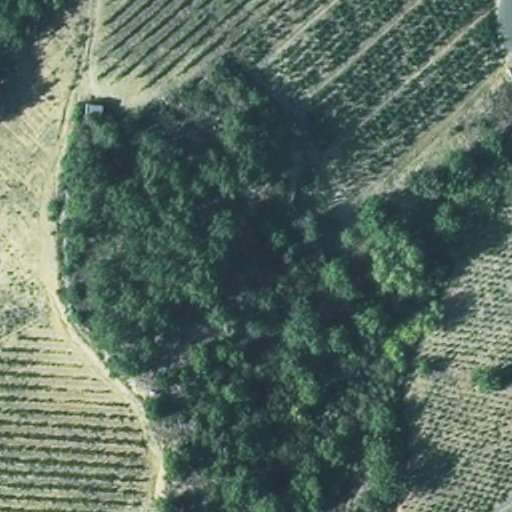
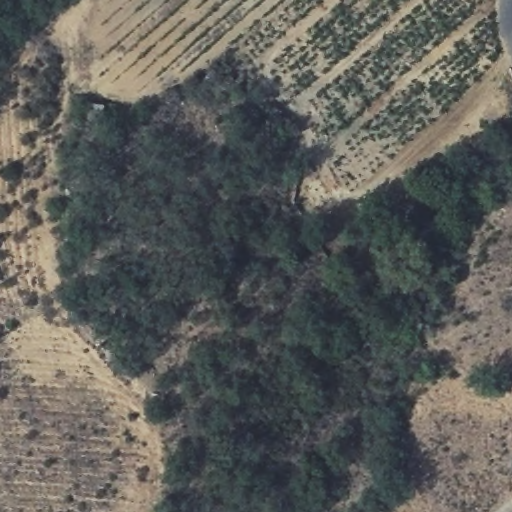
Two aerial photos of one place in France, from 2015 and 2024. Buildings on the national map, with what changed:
unchanged [(70,97),(103,99),(105,115),(78,116),(70,97)]

